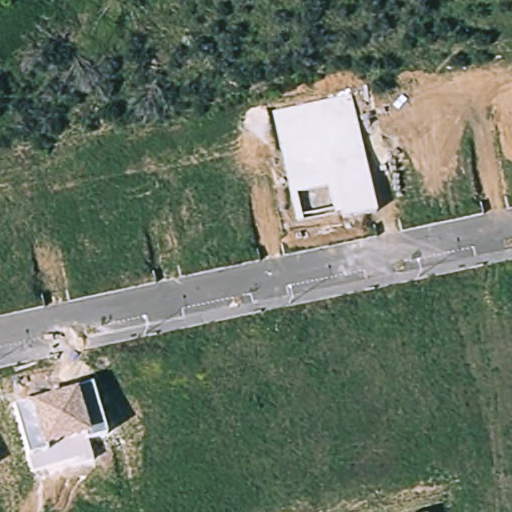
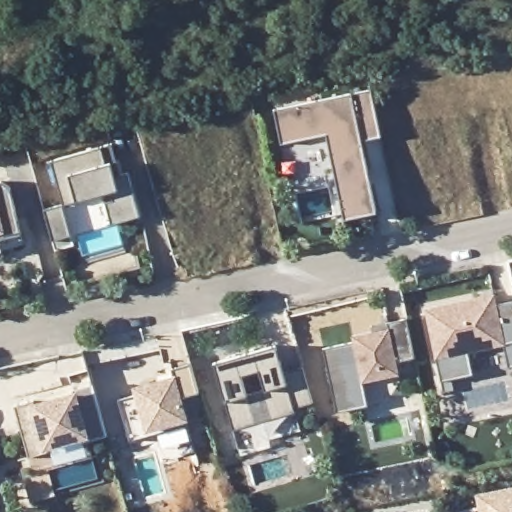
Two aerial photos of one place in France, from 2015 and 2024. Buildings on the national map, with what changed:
new [(273,111),(350,94),(370,91),(381,138),(360,143),(375,212),(344,218),(325,134),(280,143),(273,111)]
new [(43,210),(62,204),(52,161),(112,145),(121,174),(128,172),(140,218),(112,226),(106,202),(114,200),(111,192),(77,200),(77,203),(63,207),(71,236),(52,241),(43,210)]
new [(8,182),(21,232),(5,237),(6,243),(0,244),(0,177),(8,182)]
new [(467,353),(472,375),(452,379),(454,390),(444,393),(440,382),(435,360),(424,309),(492,294),(495,308),(504,344),(467,353)]
new [(512,366),(508,367),(504,344),(495,308),(512,304),(512,366)]
new [(384,379),(363,383),(369,407),(336,414),(323,350),(354,343),(352,338),(372,333),(371,327),(387,324),(407,320),(415,359),(396,363),(399,376),(384,379)]
new [(277,347),(285,374),(304,369),(314,404),(295,410),(302,432),(239,451),(214,365),(277,347)]
new [(139,396),(137,390),(175,379),(173,370),(192,365),(200,394),(181,399),(191,435),(133,451),(119,402),(139,396)]
unchanged [(107,435),(87,440),(85,434),(46,446),(48,450),(29,455),(15,406),(92,383),(107,435)]
new [(475,494),(512,486),(512,512),(479,512),(475,494)]

